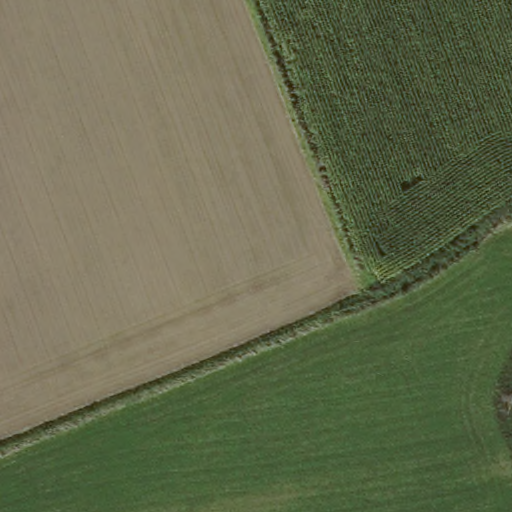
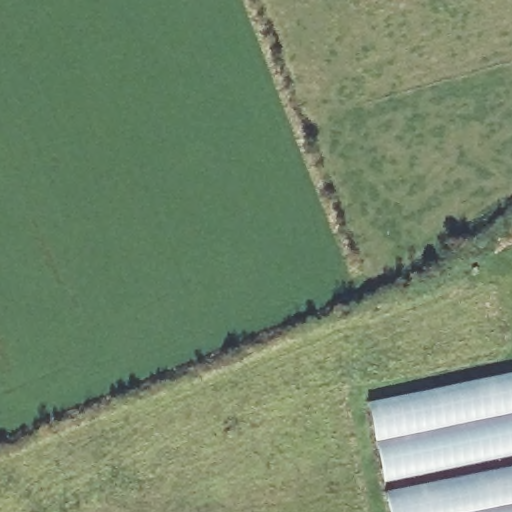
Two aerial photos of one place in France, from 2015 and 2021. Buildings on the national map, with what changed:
new [(370,408),(512,377),(512,453),(385,480),(370,408)]
new [(387,496),(512,470),(512,512),(391,512),(387,496)]

